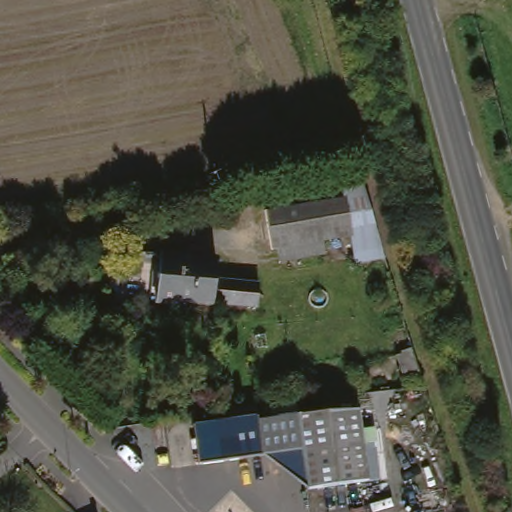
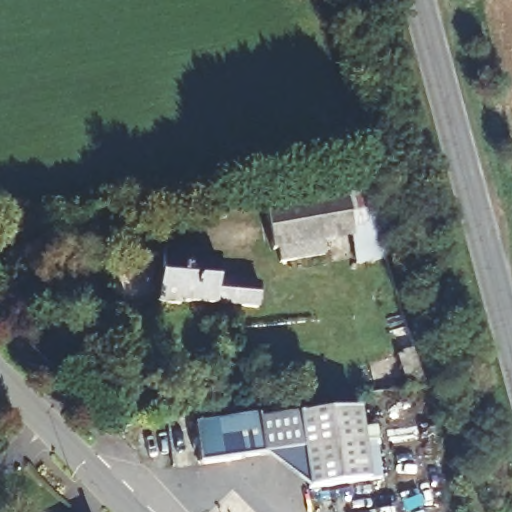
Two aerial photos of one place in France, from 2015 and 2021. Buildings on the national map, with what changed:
unchanged [(369,185),(390,250),(390,258),(362,264),(357,236),(329,241),(331,254),(285,262),(283,249),(277,250),(271,212),(350,199),(348,189),(369,185)]
unchanged [(220,275),(218,298),(218,300),(185,297),(184,300),(161,298),(166,249),(222,254),(220,275)]
unchanged [(265,279),(263,302),(218,298),(220,275),(265,279)]
unchanged [(394,345),(410,340),(425,387),(409,390),(394,345)]
unchanged [(233,410),(265,405),(307,400),(308,410),(368,405),(378,477),(318,485),(313,446),(209,460),(204,421),(227,418),(226,410),(233,410)]

